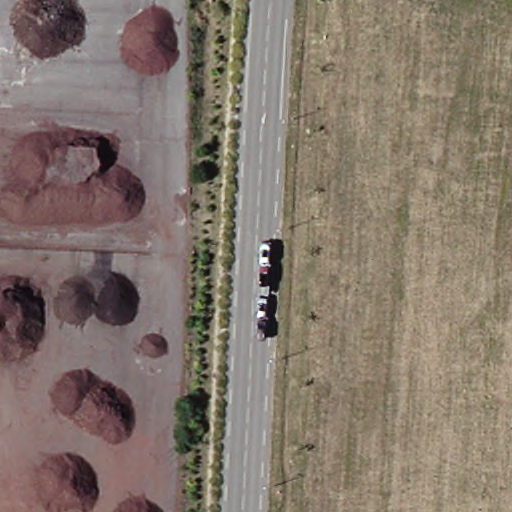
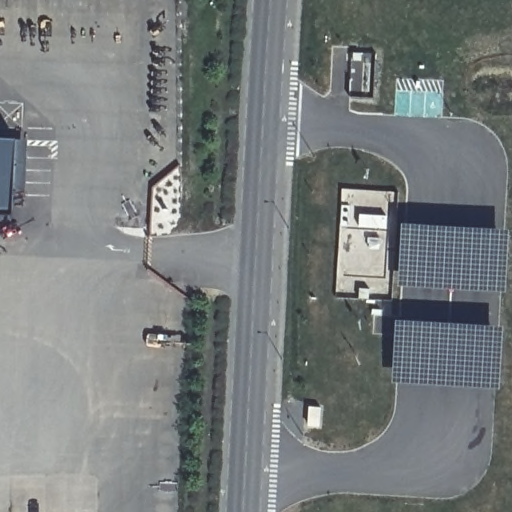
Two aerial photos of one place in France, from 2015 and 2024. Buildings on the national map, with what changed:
new [(14,215),(0,214),(0,139),(17,140),(14,215)]
new [(402,286),(406,225),(512,232),(512,273),(511,293),(402,286)]
new [(502,390),(394,383),(398,321),(506,327),(502,390)]

